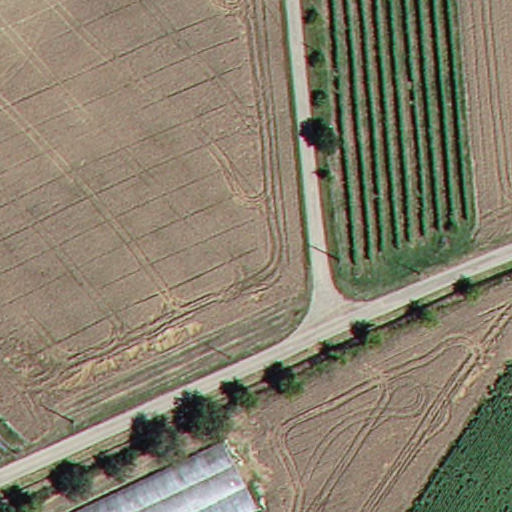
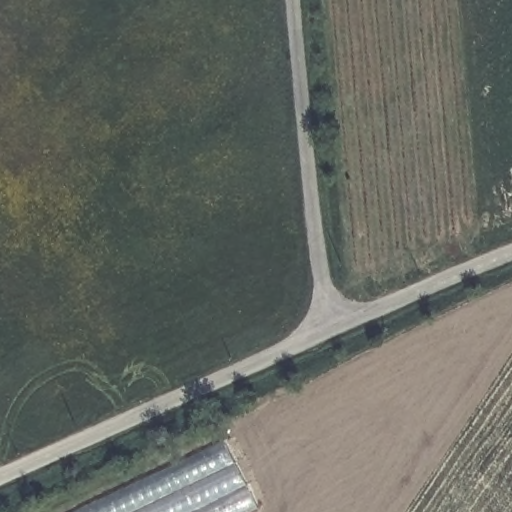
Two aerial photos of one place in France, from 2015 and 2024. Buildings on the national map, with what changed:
unchanged [(256,500),(230,512),(73,512),(221,441),(256,500)]

